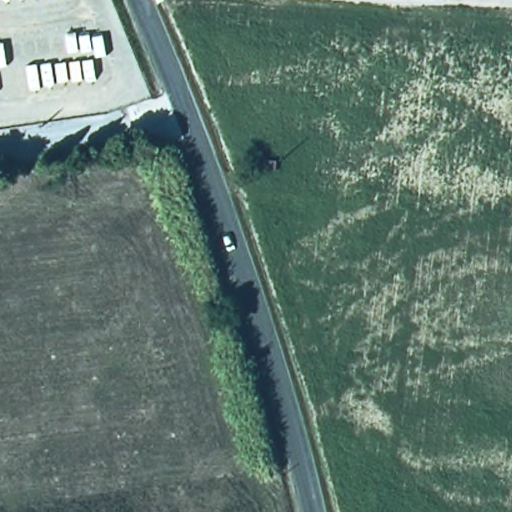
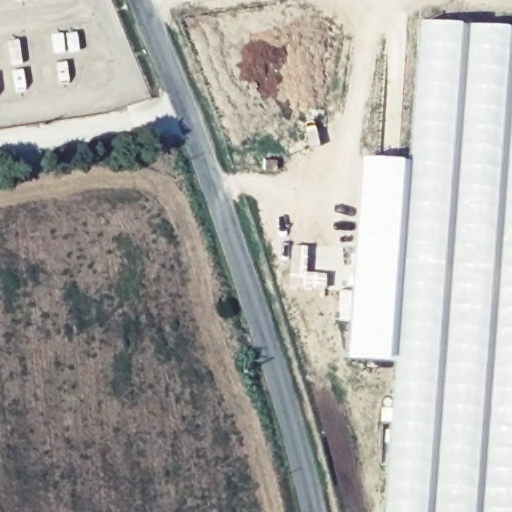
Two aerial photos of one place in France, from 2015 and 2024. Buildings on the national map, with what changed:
new [(349,361),(363,159),(411,161),(422,22),(512,29),(512,512),(386,512),(396,365),(349,361)]

